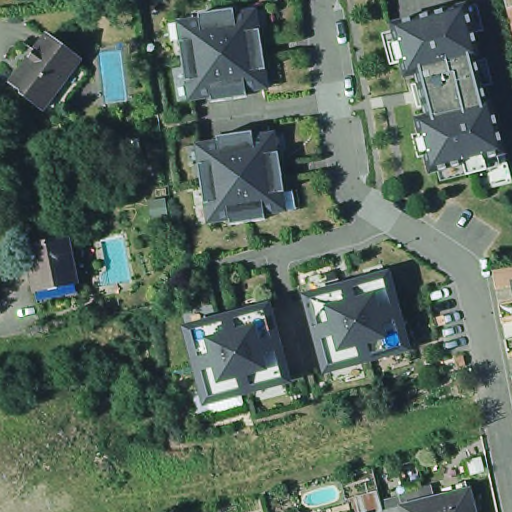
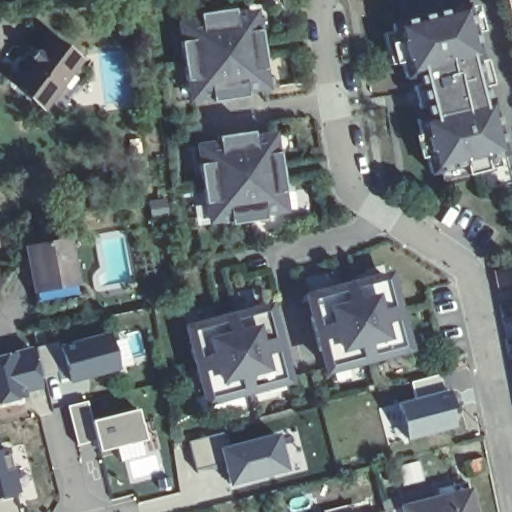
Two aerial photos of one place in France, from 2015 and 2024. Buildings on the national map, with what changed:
unchanged [(508,13),(504,0),(512,0),(512,31),(508,13)]
unchanged [(466,3),(501,152),(508,180),(478,185),(471,168),(426,178),(412,120),(424,116),(413,73),(399,75),(387,26),(466,3)]
unchanged [(178,16),(254,7),(264,88),(188,98),(178,16)]
unchanged [(8,77),(35,40),(43,31),(52,38),(74,55),(71,59),(83,68),(51,110),(38,101),(20,86),(8,77)]
unchanged [(271,127),(281,212),(203,221),(195,140),(271,127)]
unchanged [(72,238),(79,278),(38,285),(34,266),(25,268),(23,254),(33,253),(31,245),(72,238)]
unchanged [(390,273),(407,350),(324,369),(304,293),(390,273)]
unchanged [(264,304),(286,381),(203,402),(183,325),(264,304)]
new [(59,346),(108,333),(118,367),(69,380),(59,346)]
new [(45,390),(29,395),(30,399),(0,406),(0,356),(36,347),(45,390)]
new [(449,393),(458,430),(411,440),(401,402),(449,393)]
new [(86,400),(91,420),(136,408),(143,439),(98,450),(94,439),(76,444),(66,405),(86,400)]
new [(223,434),(226,447),(279,435),(289,472),(230,487),(223,465),(191,472),(185,442),(223,434)]
new [(0,495),(0,449),(4,447),(15,491),(0,495)]
unchanged [(448,494),(452,492),(452,491),(466,488),(471,512),(410,512),(449,502),(448,494)]
unchanged [(350,512),(342,512),(350,510),(350,512)]

